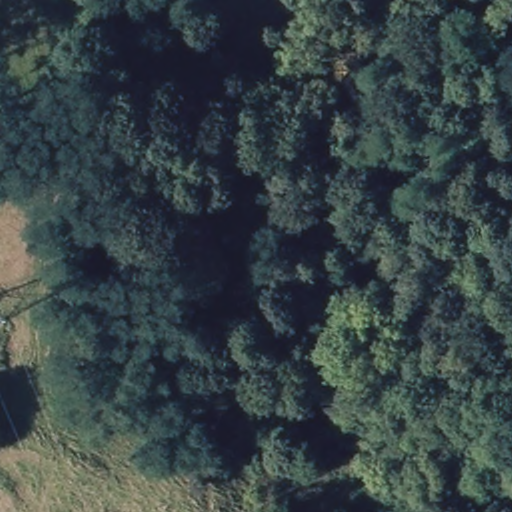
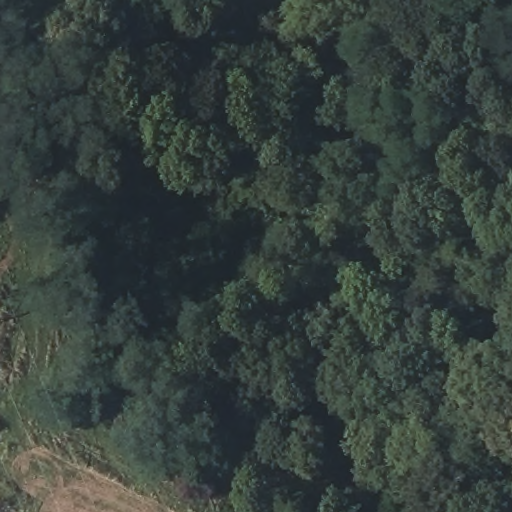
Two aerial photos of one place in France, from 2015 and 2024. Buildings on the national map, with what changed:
[]

